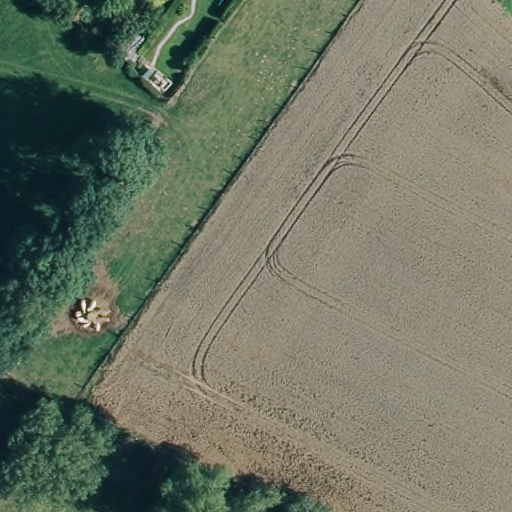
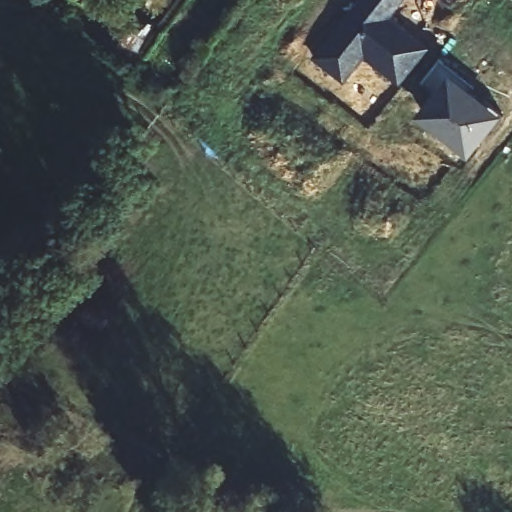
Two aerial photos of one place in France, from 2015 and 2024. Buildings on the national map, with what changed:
new [(390,16),(430,47),(400,84),(364,57),(345,82),(313,57),(357,0),(402,0),(390,16)]
new [(422,81),(439,60),(503,111),(468,156),(462,154),(414,116),(434,90),(422,81)]

